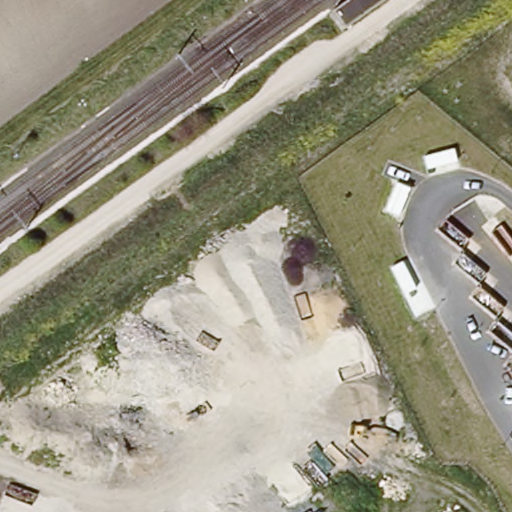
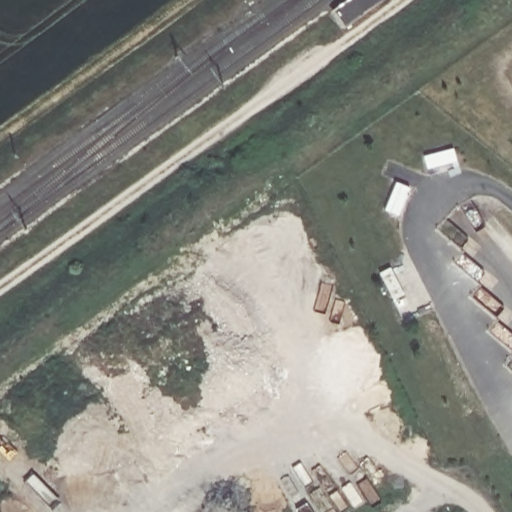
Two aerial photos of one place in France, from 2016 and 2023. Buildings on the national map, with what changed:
unchanged [(385,2),(340,33),(327,14),(347,0),(383,0),(385,2)]

